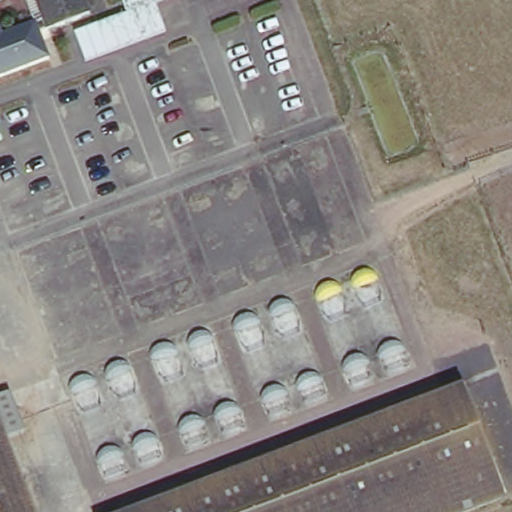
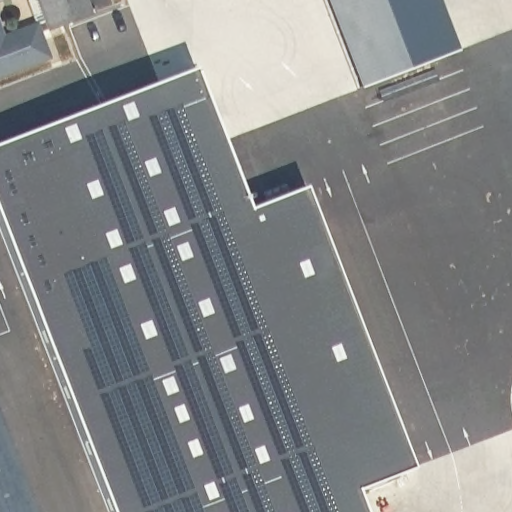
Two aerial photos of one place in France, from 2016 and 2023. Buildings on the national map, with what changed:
unchanged [(0,0),(5,0),(0,2),(0,0)]
unchanged [(47,27),(38,0),(84,0),(89,12),(47,27)]
new [(360,83),(329,0),(422,0),(442,53),(360,83)]
unchanged [(34,22),(49,56),(0,74),(0,27),(2,32),(34,22)]
new [(244,229),(296,208),(407,476),(343,503),(346,512),(112,512),(0,242),(0,151),(184,81),(244,229)]
demolished [(472,383),(512,487),(512,495),(468,512),(134,512),(472,383)]
unchanged [(40,512),(0,512),(0,407),(10,433),(40,512)]

